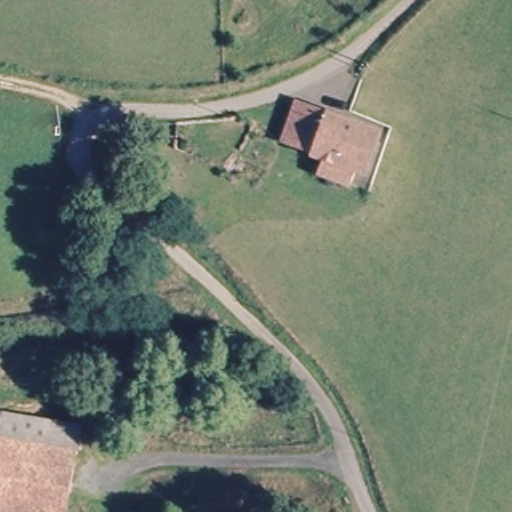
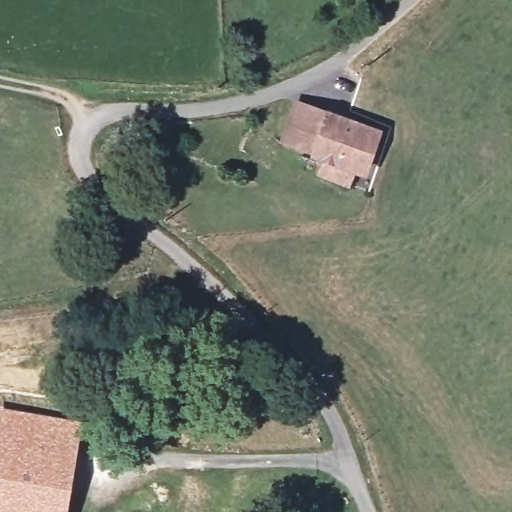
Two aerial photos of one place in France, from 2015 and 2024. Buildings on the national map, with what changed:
unchanged [(317,154),(287,147),(295,116),(296,109),(327,115),(317,154)]
unchanged [(327,175),(332,157),(317,154),(327,115),(344,119),(380,126),(369,166),(359,164),(355,182),(327,175)]
unchanged [(70,512),(0,512),(0,457),(5,416),(89,426),(86,452),(77,451),(70,512)]
unchanged [(135,506),(147,512),(133,512),(135,506)]

